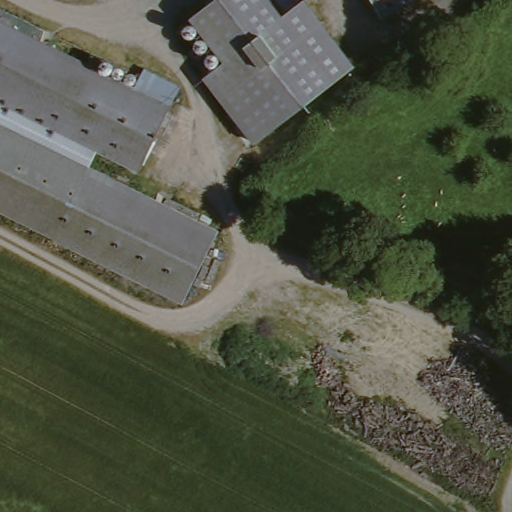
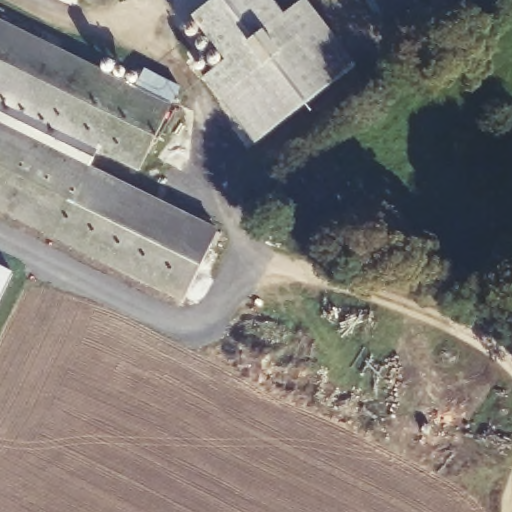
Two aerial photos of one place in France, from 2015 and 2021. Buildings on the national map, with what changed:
unchanged [(356,64),(256,139),(206,73),(228,56),(218,43),(195,12),(211,0),(274,0),(284,14),(302,0),(308,0),(356,64)]
unchanged [(381,15),(372,0),(408,0),(381,15)]
unchanged [(141,170),(101,150),(93,165),(221,230),(184,305),(0,211),(0,118),(62,150),(69,135),(0,100),(0,17),(174,103),(141,170)]
new [(0,298),(0,264),(13,271),(0,298)]

